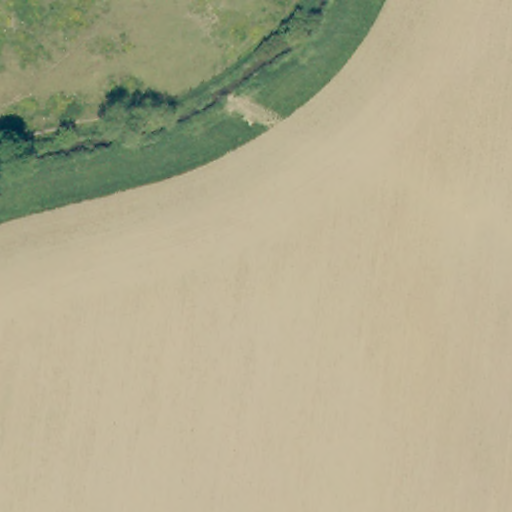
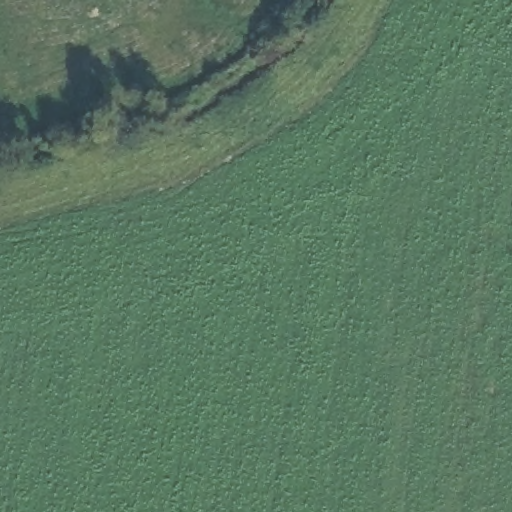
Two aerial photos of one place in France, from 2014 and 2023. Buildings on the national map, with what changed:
[]

